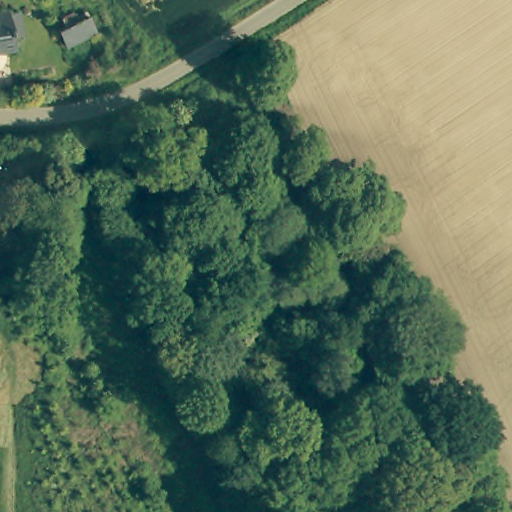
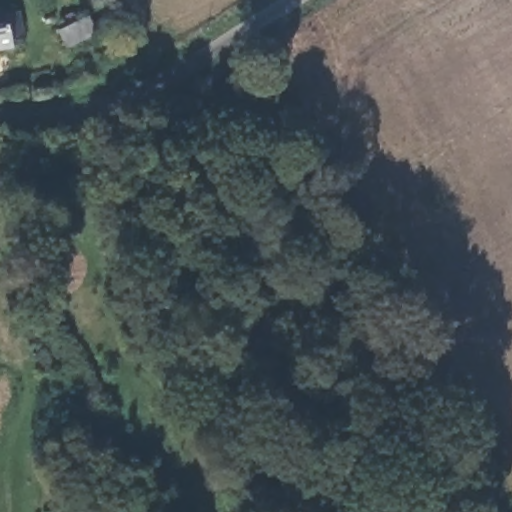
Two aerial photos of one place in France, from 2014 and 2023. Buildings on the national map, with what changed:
unchanged [(0,49),(0,11),(9,10),(9,12),(21,11),(24,35),(12,36),(14,47),(0,49)]
unchanged [(76,15),(86,31),(76,37),(56,50),(46,34),(62,24),(76,15)]

